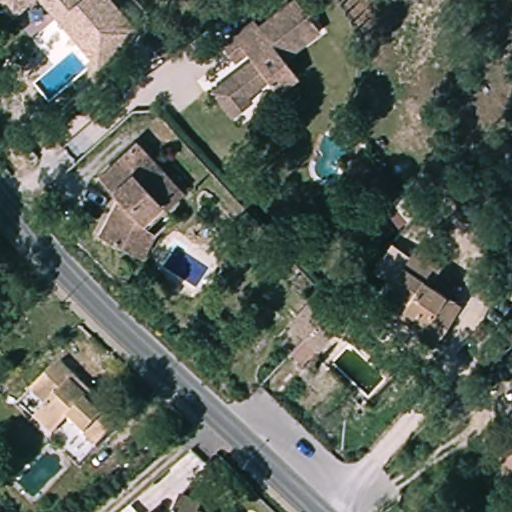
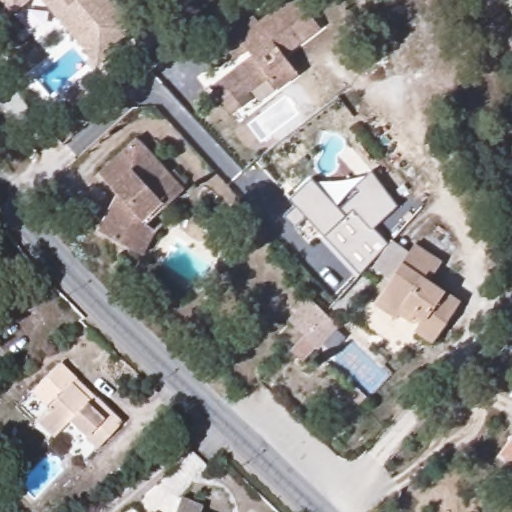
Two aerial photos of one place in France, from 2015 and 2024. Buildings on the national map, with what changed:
unchanged [(3,0),(23,0),(11,9),(3,0)]
unchanged [(44,0),(112,0),(135,29),(95,62),(44,0)]
unchanged [(257,22),(289,0),(304,0),(323,29),(280,58),(290,72),(293,77),(272,92),(267,85),(260,75),(231,95),(236,102),(238,104),(225,113),(204,84),(208,81),(234,64),(216,38),(252,14),(257,22)]
unchanged [(159,226),(141,251),(128,242),(100,223),(124,190),(106,167),(147,137),(176,175),(181,171),(191,185),(187,189),(189,192),(170,207),(151,220),(159,226)]
new [(338,209),(356,191),(353,187),(370,171),(396,207),(371,228),(388,244),(391,240),(407,251),(386,278),(371,267),(386,245),(358,275),(322,236),(305,217),(293,227),(284,216),(295,206),(289,199),(310,179),(338,209)]
demolished [(396,207),(385,216),(366,192),(378,183),(396,207)]
unchanged [(443,255),(433,270),(463,292),(433,333),(416,323),(426,307),(416,302),(412,309),(401,301),(396,305),(377,290),(418,236),(443,255)]
unchanged [(338,325),(318,347),(315,345),(300,360),(290,350),(305,336),(287,320),(308,297),(338,325)]
unchanged [(95,449),(68,422),(53,436),(36,420),(50,406),(36,391),(63,365),(75,376),(74,383),(90,400),(96,397),(120,421),(95,449)]
unchanged [(512,436),(512,451),(505,446),(512,436)]
unchanged [(512,470),(508,467),(512,462),(512,470)]
unchanged [(188,496),(206,505),(204,512),(179,512),(188,496)]

